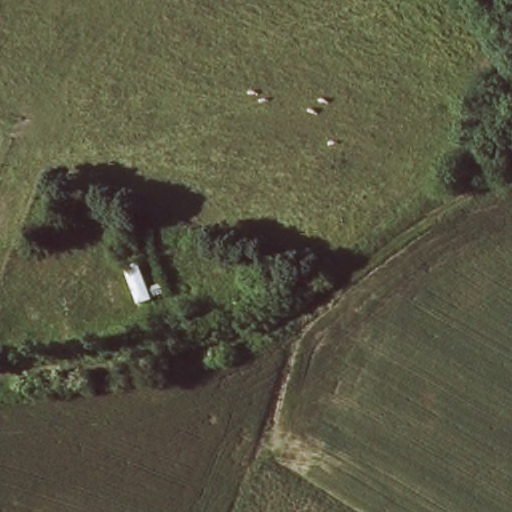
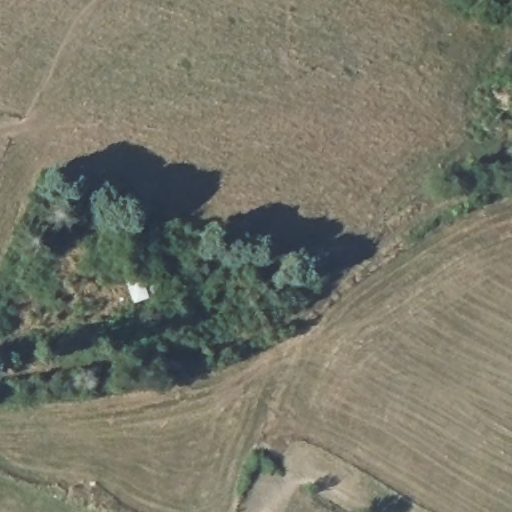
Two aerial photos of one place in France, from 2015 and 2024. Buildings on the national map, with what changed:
unchanged [(162,295),(134,304),(121,265),(128,262),(138,259),(147,287),(159,284),(162,295)]

